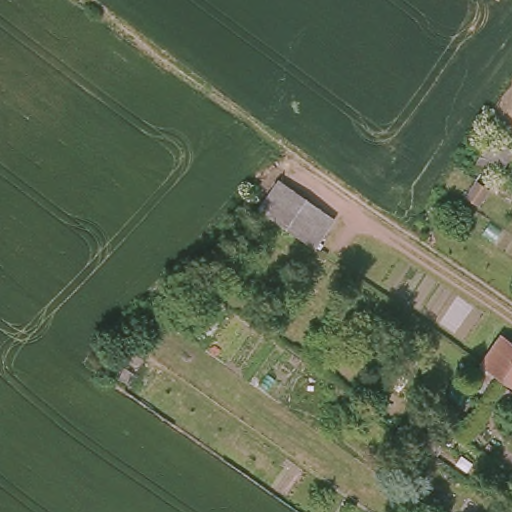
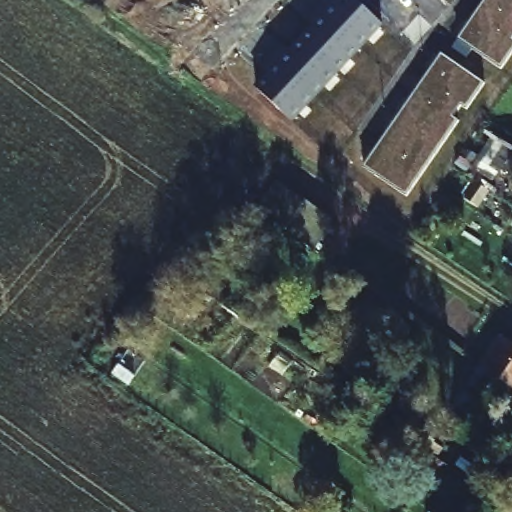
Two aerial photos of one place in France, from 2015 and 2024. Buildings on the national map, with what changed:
new [(292,123),(255,87),(335,0),(357,0),(382,25),(292,123)]
new [(460,36),(485,0),(512,0),(512,50),(501,66),(460,36)]
new [(440,61),(457,64),(485,83),(467,109),(462,105),(453,117),(459,120),(407,195),(368,168),(440,61)]
unchanged [(331,216),(311,244),(255,205),(276,178),(331,216)]
unchanged [(512,387),(500,379),(500,378),(483,367),(502,339),(512,346),(512,387)]

